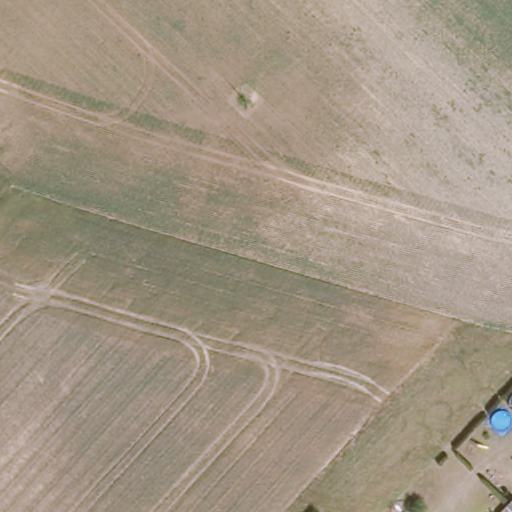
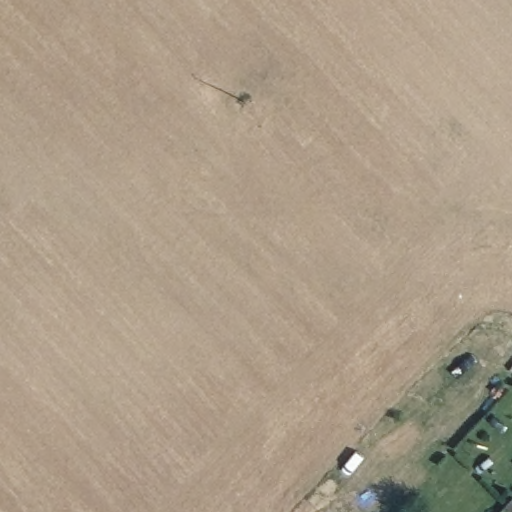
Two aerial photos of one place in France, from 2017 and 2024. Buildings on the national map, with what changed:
unchanged [(512,498),(512,509),(510,510),(499,500),(505,492),(512,498)]

